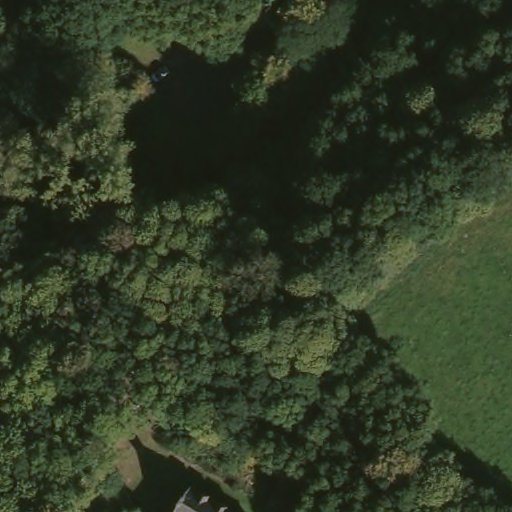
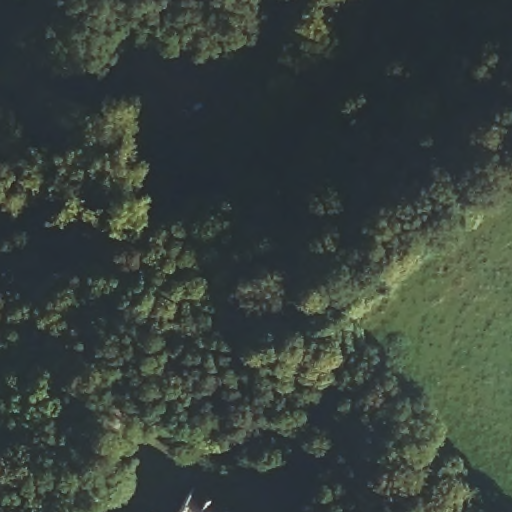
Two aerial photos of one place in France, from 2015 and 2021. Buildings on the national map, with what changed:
unchanged [(197,479),(234,504),(228,512),(175,512),(197,479)]
unchanged [(234,504),(245,512),(228,512),(234,504)]

